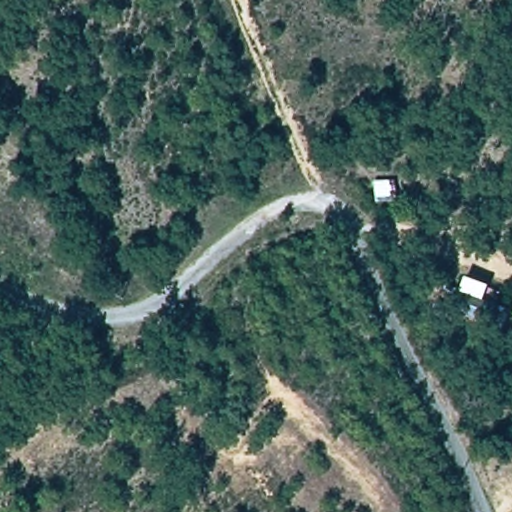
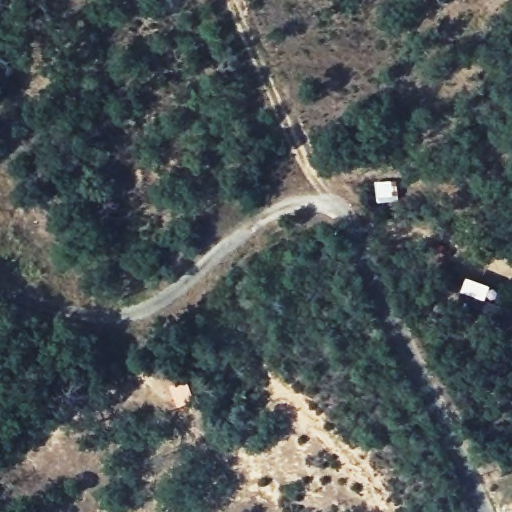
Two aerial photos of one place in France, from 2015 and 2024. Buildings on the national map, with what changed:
unchanged [(463,282),(509,296),(502,316),(457,300),(463,282)]

